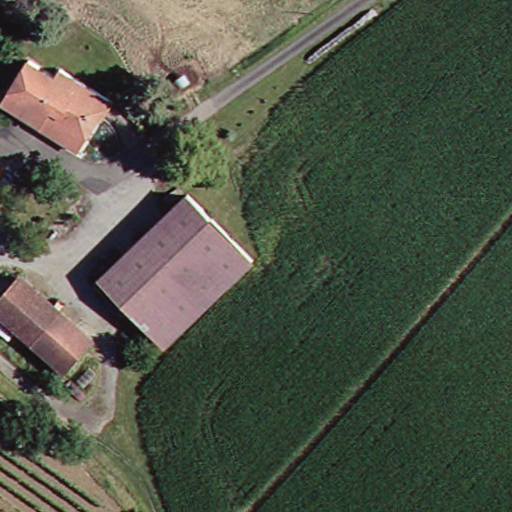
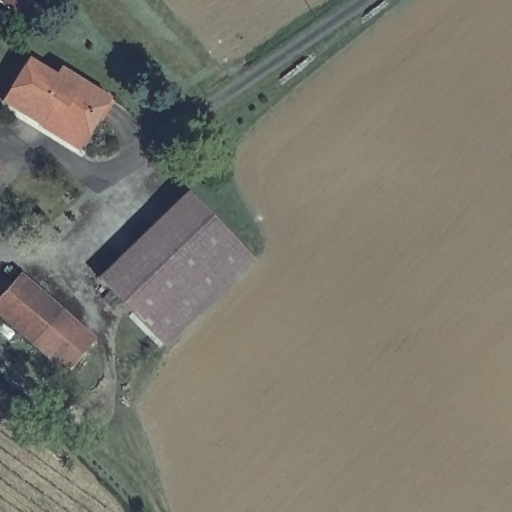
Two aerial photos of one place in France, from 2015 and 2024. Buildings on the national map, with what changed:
unchanged [(26,114),(6,102),(12,93),(32,59),(63,76),(67,69),(117,99),(95,136),(87,150),(46,125),(26,114)]
unchanged [(0,163),(3,165),(0,170),(0,163)]
unchanged [(106,274),(182,201),(194,189),(261,255),(242,274),(217,297),(170,341),(162,333),(106,274)]
unchanged [(48,240),(40,233),(52,217),(62,226),(48,240)]
unchanged [(1,309),(29,275),(98,340),(68,374),(1,309)]

